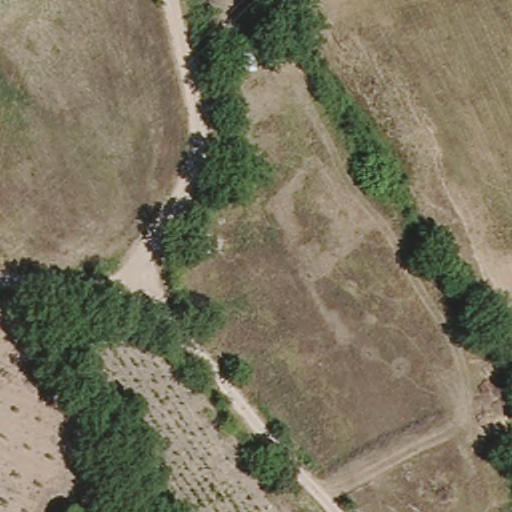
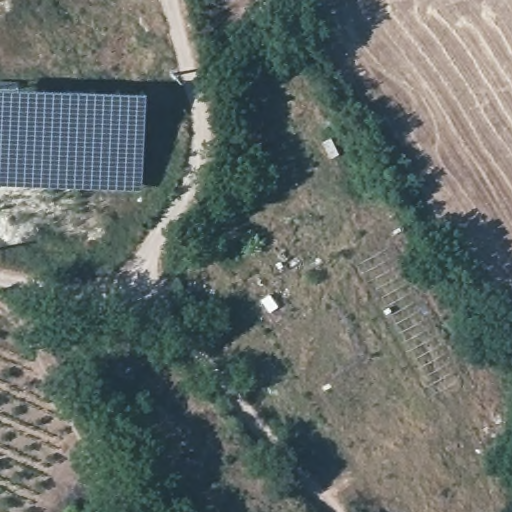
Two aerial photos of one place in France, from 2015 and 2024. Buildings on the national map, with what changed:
new [(144,92),(140,191),(0,185),(0,88),(144,92)]

